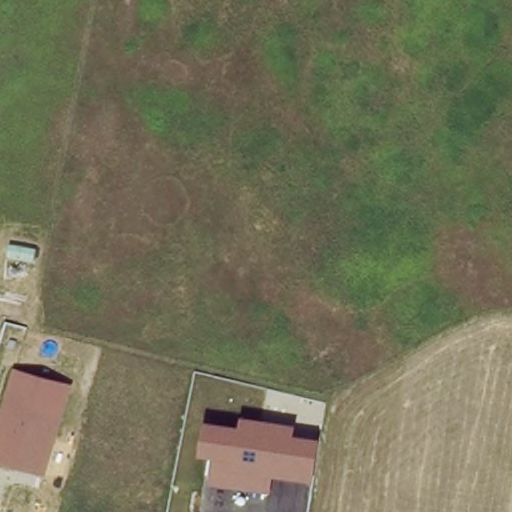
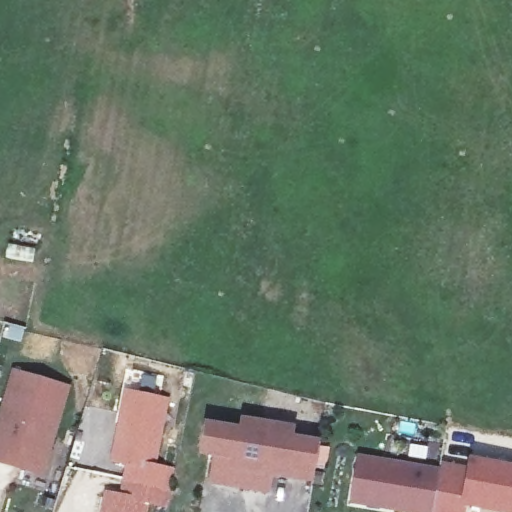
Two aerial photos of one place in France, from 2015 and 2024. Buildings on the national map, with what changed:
unchanged [(0,464),(0,415),(12,372),(70,388),(44,477),(0,464)]
new [(175,400),(160,465),(175,467),(165,509),(152,506),(151,512),(103,512),(107,491),(122,493),(128,465),(110,461),(127,389),(175,400)]
unchanged [(310,484),(271,478),(268,496),(208,486),(212,460),(198,457),(205,418),(239,426),(242,417),(296,427),(295,437),(320,441),(310,484)]
new [(440,467),(432,512),(401,512),(350,503),(357,453),(440,467)]
new [(512,467),(512,511),(509,511),(512,499),(488,495),(485,507),(465,502),(472,461),(512,467)]

